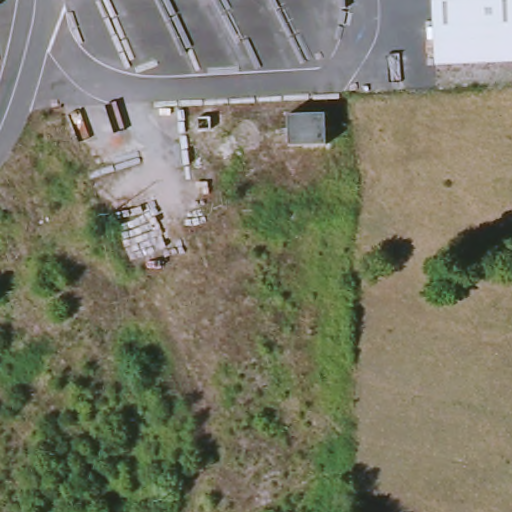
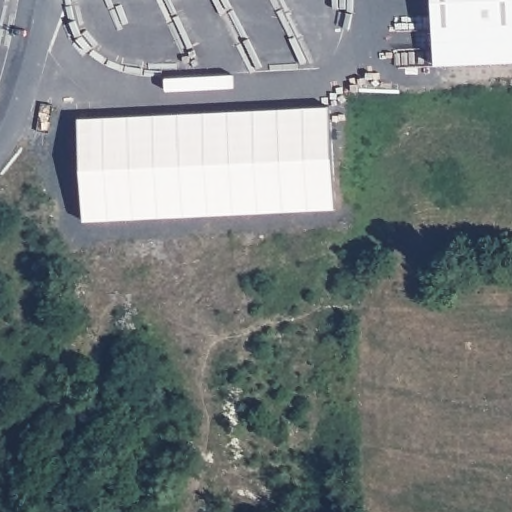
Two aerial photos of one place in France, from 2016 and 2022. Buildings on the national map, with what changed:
unchanged [(435,68),(432,0),(512,0),(512,66),(435,68)]
new [(326,112),(332,209),(83,222),(79,125),(326,112)]

